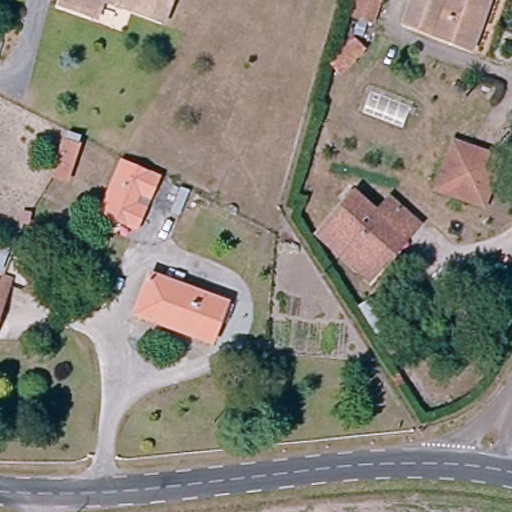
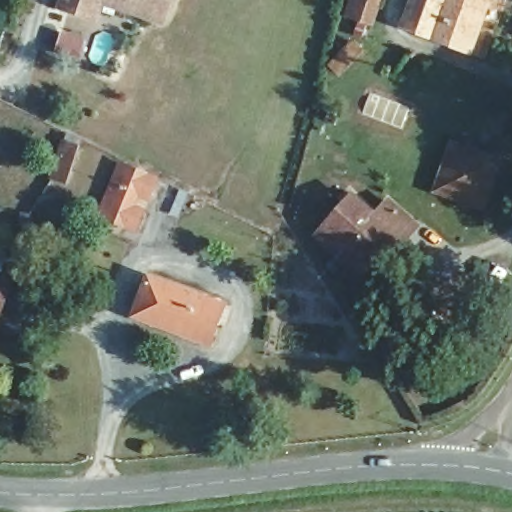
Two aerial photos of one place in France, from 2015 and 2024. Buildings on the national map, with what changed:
unchanged [(95,16),(60,3),(61,0),(101,0),(95,16)]
unchanged [(162,20),(107,0),(169,0),(162,20)]
unchanged [(380,29),(345,19),(351,0),(388,0),(380,29)]
unchanged [(472,55),(405,27),(416,0),(478,0),(492,5),(472,55)]
unchanged [(88,149),(78,180),(54,173),(61,151),(64,142),(88,149)]
unchanged [(440,198),(457,150),(503,167),(487,215),(440,198)]
unchanged [(103,220),(120,176),(156,191),(149,208),(135,203),(131,212),(145,218),(139,235),(103,220)]
unchanged [(361,279),(320,239),(365,194),(386,213),(394,206),(421,233),(402,252),(368,287),(361,279)]
unchanged [(229,307),(215,345),(138,317),(152,279),(229,307)]
unchanged [(0,319),(0,286),(9,289),(0,319)]

